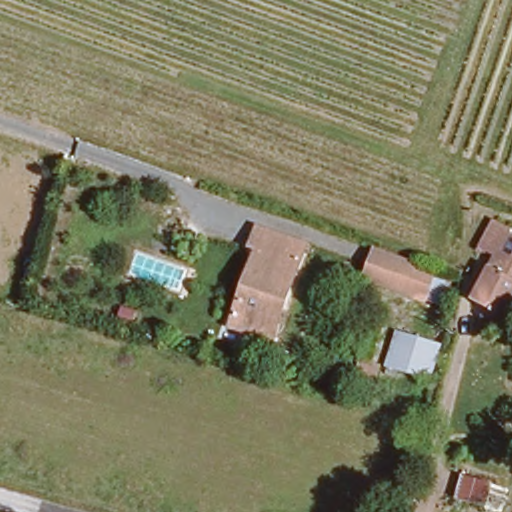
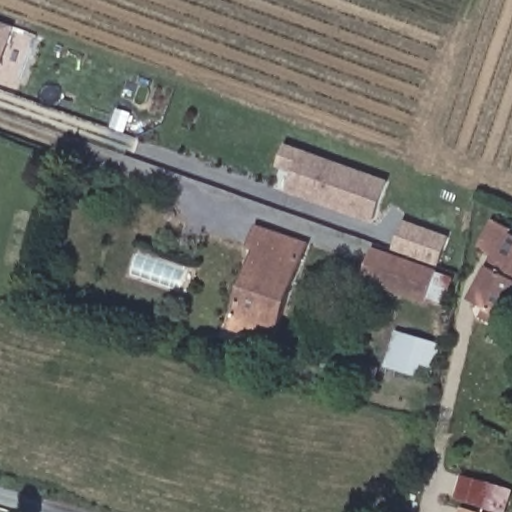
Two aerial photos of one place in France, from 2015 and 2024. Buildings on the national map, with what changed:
new [(0,67),(0,22),(14,27),(0,67)]
new [(286,143),(389,181),(374,224),(288,193),(295,174),(278,167),(286,143)]
unchanged [(497,250),(481,241),(494,217),(512,227),(509,230),(512,232),(512,302),(509,308),(476,292),(497,250)]
new [(439,267),(393,250),(404,219),(451,236),(439,267)]
unchanged [(249,247),(257,229),(304,245),(274,339),(237,324),(259,251),(249,247)]
unchanged [(434,305),(421,299),(369,281),(381,249),(431,269),(444,275),(434,305)]
unchanged [(378,360),(389,325),(443,342),(433,375),(378,360)]
new [(454,500),(462,474),(511,489),(504,512),(460,512),(462,508),(454,500)]

